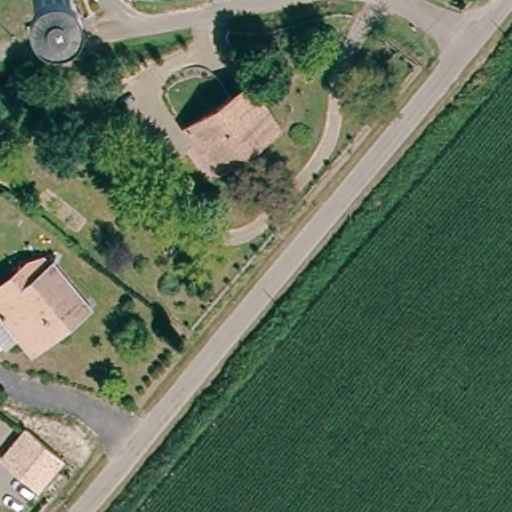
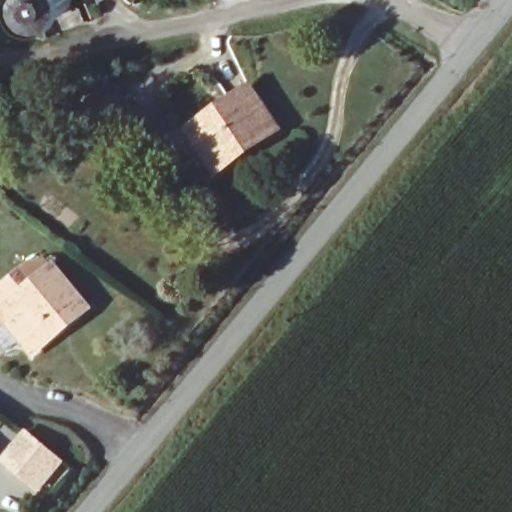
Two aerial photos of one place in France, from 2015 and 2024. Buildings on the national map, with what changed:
unchanged [(188,134),(247,90),(279,129),(262,143),(256,136),(222,163),(209,145),(200,152),(188,134)]
unchanged [(38,346),(32,340),(15,355),(0,339),(0,329),(2,327),(0,324),(0,297),(21,278),(34,290),(60,268),(94,309),(76,324),(45,354),(38,346)]
unchanged [(24,429),(64,463),(38,494),(0,461),(24,429)]

